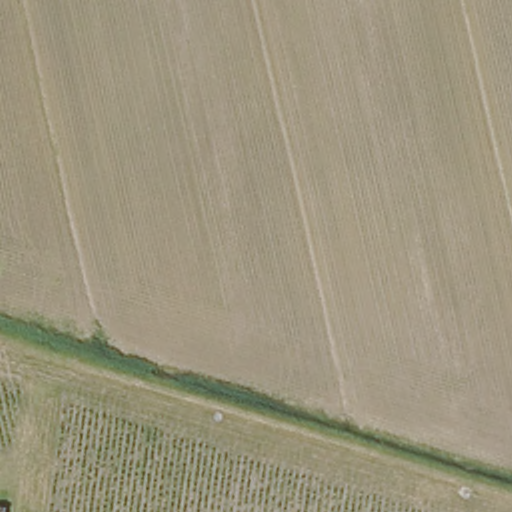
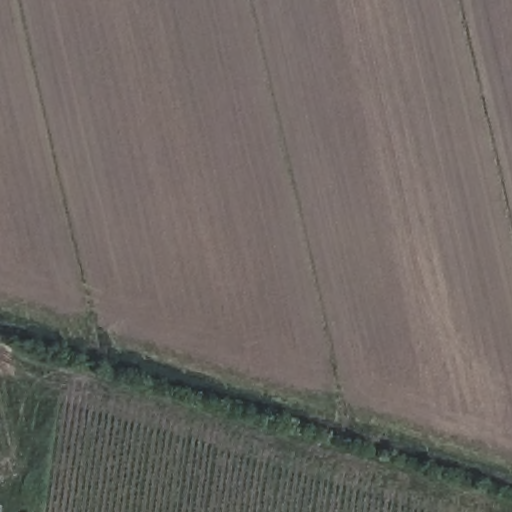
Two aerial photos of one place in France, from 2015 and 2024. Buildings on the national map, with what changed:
[]

